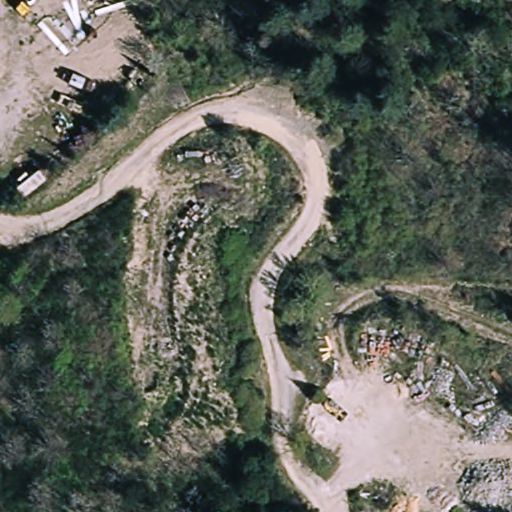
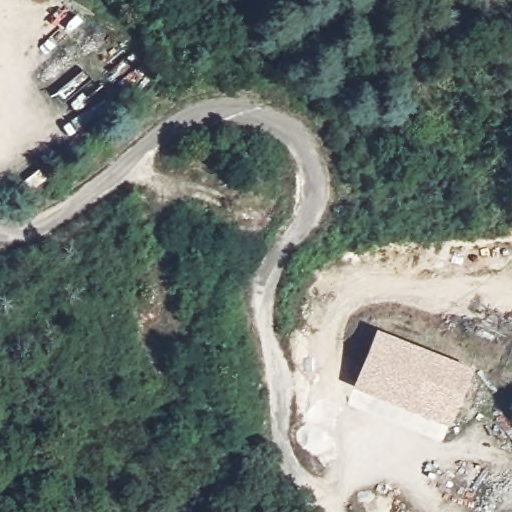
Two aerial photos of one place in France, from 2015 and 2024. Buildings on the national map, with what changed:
new [(353,388),(377,330),(474,368),(450,428),(353,388)]

